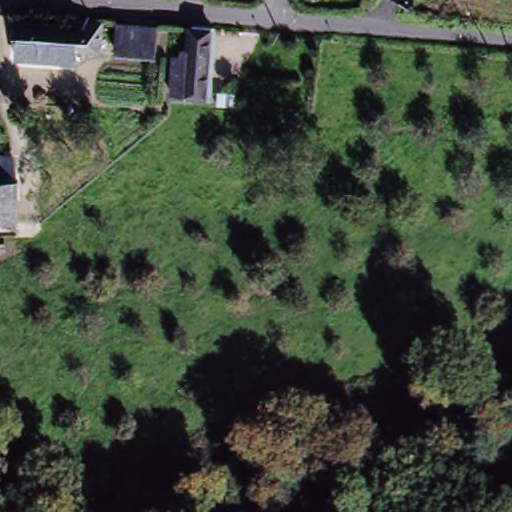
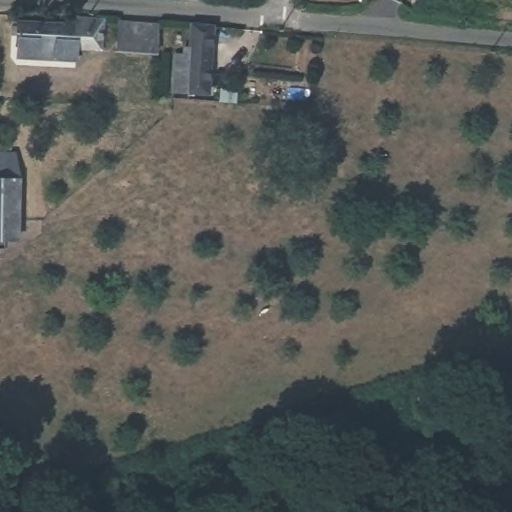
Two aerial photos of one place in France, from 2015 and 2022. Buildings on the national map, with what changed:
unchanged [(77,51),(75,63),(22,58),(22,46),(16,46),(17,21),(77,26),(78,19),(104,23),(101,53),(77,51)]
unchanged [(159,26),(157,57),(117,55),(120,23),(159,26)]
unchanged [(211,91),(195,89),(194,96),(177,94),(180,58),(189,59),(190,50),(194,51),(196,27),(216,30),(211,91)]
unchanged [(10,189),(16,189),(16,248),(0,247),(0,160),(12,161),(10,189)]

